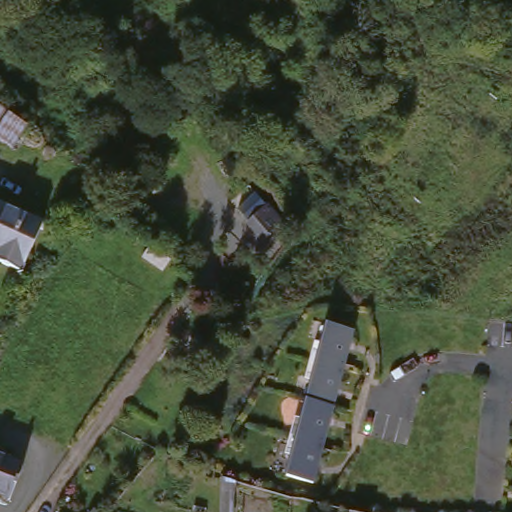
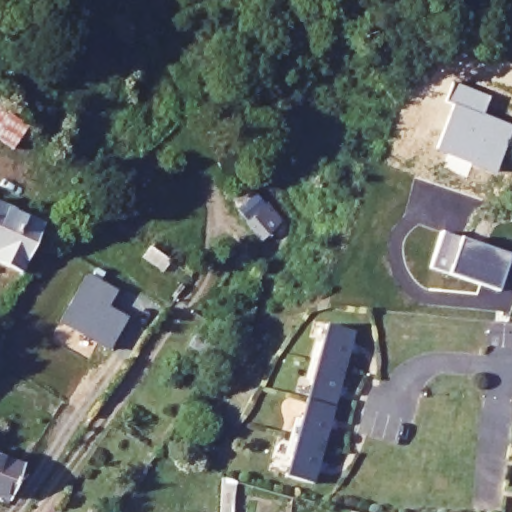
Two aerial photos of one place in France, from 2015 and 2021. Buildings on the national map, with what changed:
new [(446,103),(454,83),(492,97),(485,116),(512,126),(512,138),(499,172),(439,149),(455,105),(446,103)]
unchanged [(24,133),(6,156),(0,152),(0,113),(24,133)]
unchanged [(278,222),(256,236),(243,215),(264,201),(278,222)]
unchanged [(0,273),(0,205),(44,235),(10,279),(0,273)]
new [(441,230),(458,235),(506,254),(496,289),(446,271),(429,265),(441,230)]
new [(151,247),(172,260),(164,271),(144,258),(151,247)]
new [(89,273),(119,290),(109,306),(129,317),(110,348),(61,319),(89,273)]
unchanged [(346,336),(307,488),(279,481),(319,330),(346,336)]
unchanged [(6,501),(0,500),(0,459),(17,463),(6,501)]
unchanged [(226,512),(212,512),(214,482),(227,486),(226,512)]
unchanged [(356,510),(366,511),(366,512),(342,512),(342,509),(356,510)]

